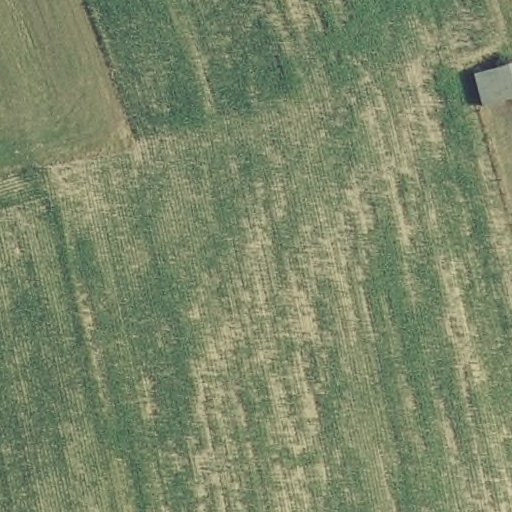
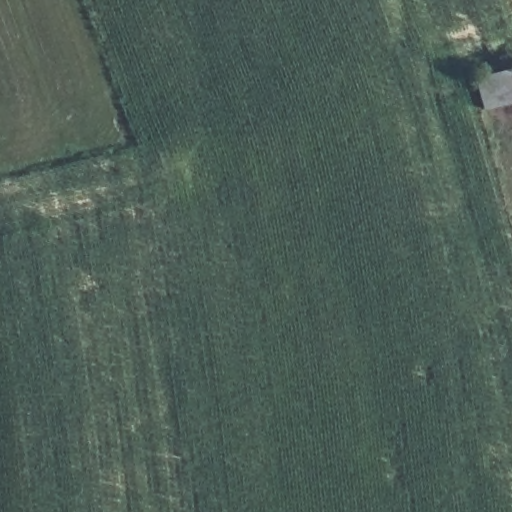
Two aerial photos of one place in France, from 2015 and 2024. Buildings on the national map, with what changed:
unchanged [(512,70),(512,106),(480,115),(472,79),(512,68),(512,70)]

